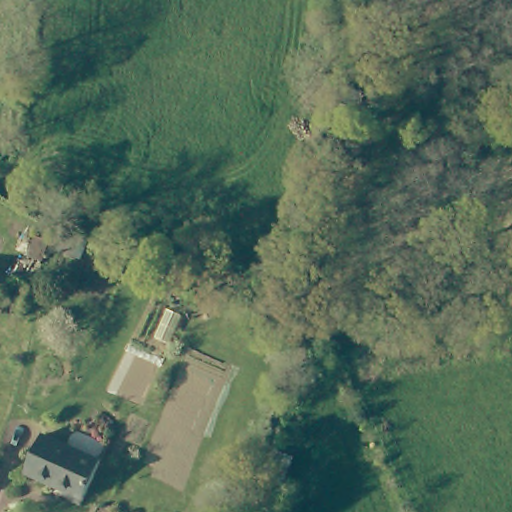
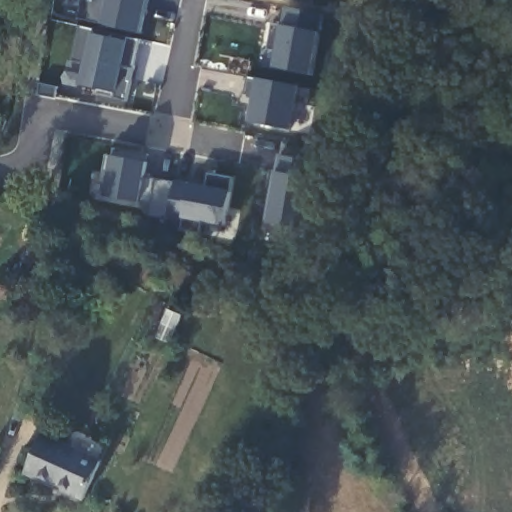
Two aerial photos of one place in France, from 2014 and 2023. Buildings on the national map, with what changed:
new [(142,32),(99,24),(75,18),(80,0),(93,0),(150,0),(142,32)]
new [(304,0),(310,0),(309,1),(304,0)]
new [(319,34),(311,72),(275,66),(277,55),(270,54),(275,24),(282,25),(284,9),(323,15),(319,34)]
new [(127,102),(95,95),(99,90),(77,85),(82,64),(73,61),(81,27),(141,40),(127,102)]
new [(289,130),(249,122),(254,96),(244,94),(247,76),(298,86),(289,130)]
new [(230,191),(223,225),(170,215),(168,220),(148,215),(150,205),(140,202),(101,196),(110,154),(114,154),(115,147),(151,154),(150,161),(146,176),(173,180),(207,185),(209,172),(233,177),(230,191)]
new [(298,227),(262,220),(277,155),(313,161),(298,227)]
unchanged [(99,460),(81,498),(24,471),(41,433),(99,460)]

